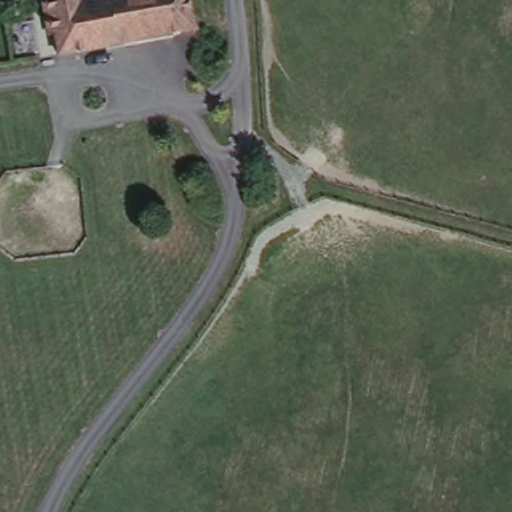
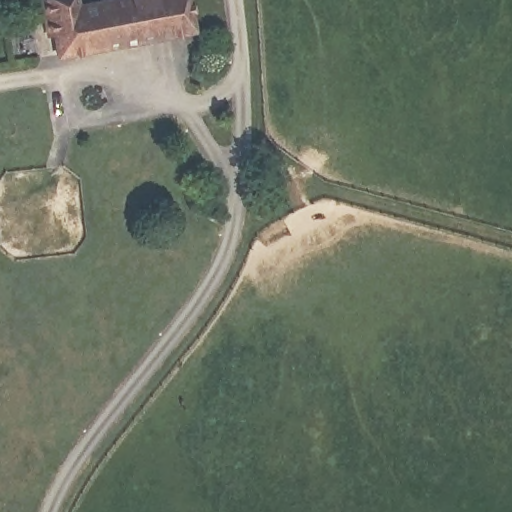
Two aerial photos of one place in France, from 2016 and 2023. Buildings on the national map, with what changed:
unchanged [(52,43),(49,27),(44,4),(70,0),(85,0),(87,10),(141,0),(202,0),(207,31),(73,57),(60,60),(56,42),(52,43)]

